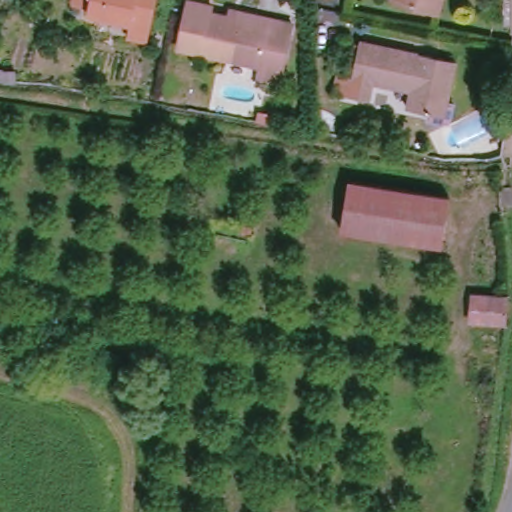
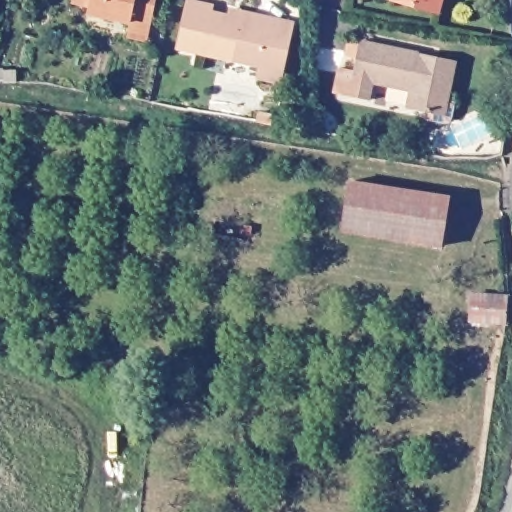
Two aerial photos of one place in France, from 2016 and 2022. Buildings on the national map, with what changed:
unchanged [(129,36),(132,22),(90,14),(90,7),(73,3),(74,0),(157,0),(151,27),(149,40),(129,36)]
unchanged [(435,13),(394,1),(394,0),(438,0),(435,13)]
unchanged [(287,87),(265,82),(266,70),(184,53),(193,6),(217,11),(216,18),(233,21),(235,15),(261,21),(298,29),(287,87)]
unchanged [(337,63),(351,66),(357,42),(455,63),(442,116),(406,109),(408,93),(370,86),(367,99),(345,95),(330,92),(337,63)]
unchanged [(261,124),(263,113),(277,116),(276,127),(261,124)]
unchanged [(445,198),(437,247),(340,232),(347,184),(445,198)]
unchanged [(472,293),(512,297),(512,325),(471,323),(472,293)]

